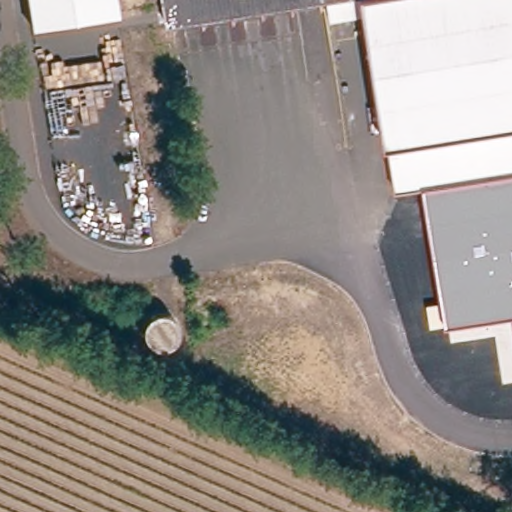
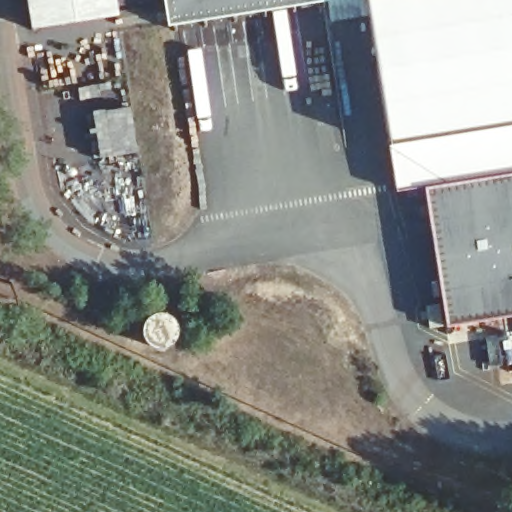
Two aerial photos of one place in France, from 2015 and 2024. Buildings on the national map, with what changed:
unchanged [(31,29),(27,0),(117,0),(119,16),(31,29)]
unchanged [(164,0),(362,0),(169,31),(164,0)]
unchanged [(399,195),(368,0),(512,0),(512,177),(399,195)]
new [(102,100),(79,102),(78,88),(119,81),(122,104),(123,105),(129,105),(136,150),(98,156),(90,109),(103,106),(102,100)]
unchanged [(512,177),(512,317),(448,327),(427,191),(512,177)]

